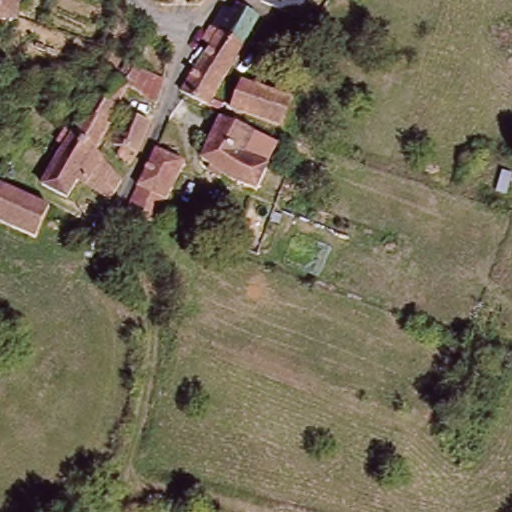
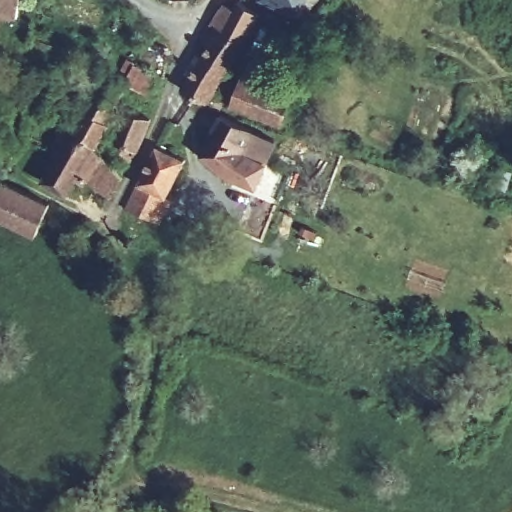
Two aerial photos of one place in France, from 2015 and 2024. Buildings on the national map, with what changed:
unchanged [(18,15),(0,14),(0,0),(19,0),(18,15)]
unchanged [(255,14),(239,43),(207,24),(220,3),(229,9),(235,0),(236,0),(255,14)]
unchanged [(310,5),(304,3),(297,15),(263,0),(314,0),(310,5)]
unchanged [(215,105),(212,104),(180,90),(184,80),(207,41),(200,37),(207,24),(239,43),(210,95),(215,98),(219,100),(215,105)]
unchanged [(103,119),(107,121),(92,146),(68,130),(71,126),(102,76),(122,79),(133,62),(162,72),(155,94),(125,82),(113,101),(103,119)]
unchanged [(284,122),(234,104),(245,76),(293,95),(284,122)]
unchanged [(127,160),(117,152),(120,146),(109,141),(124,108),(147,117),(135,148),(127,160)]
unchanged [(227,178),(199,157),(220,114),(248,127),(272,139),(262,161),(250,189),(227,178)]
unchanged [(38,178),(60,142),(55,139),(62,127),(68,130),(92,146),(117,173),(120,176),(114,186),(90,167),(84,179),(75,174),(63,193),(38,178)]
unchanged [(130,207),(159,146),(187,160),(168,197),(165,196),(155,218),(130,207)]
unchanged [(37,231),(0,214),(0,178),(50,202),(43,217),(37,231)]

